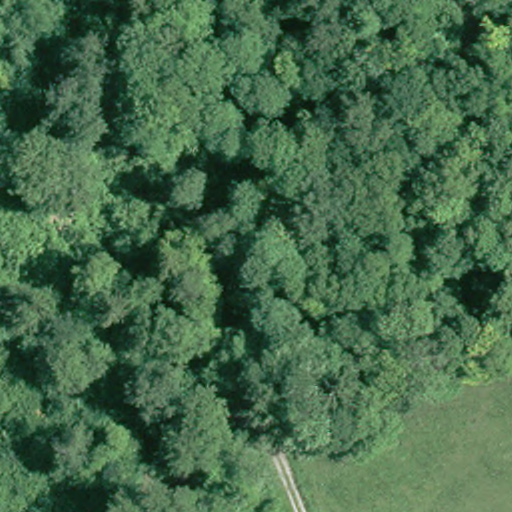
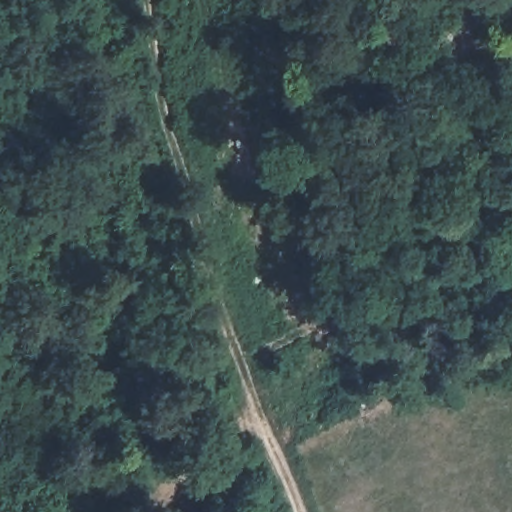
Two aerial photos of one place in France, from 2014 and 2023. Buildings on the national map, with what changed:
[]

